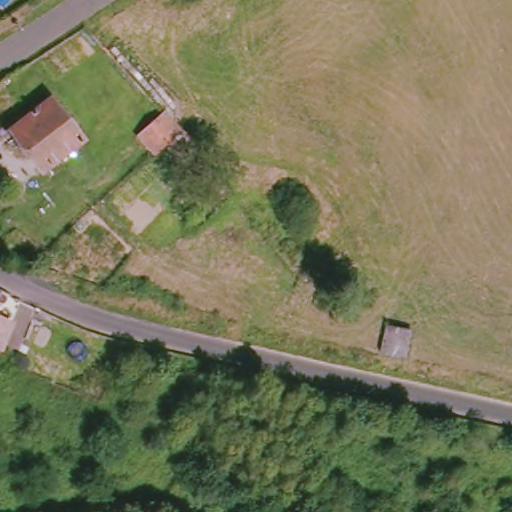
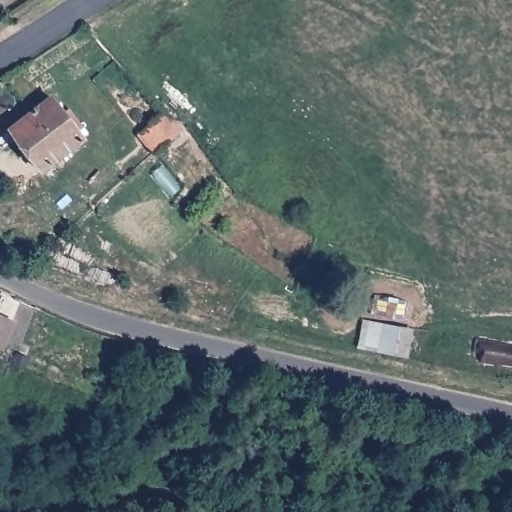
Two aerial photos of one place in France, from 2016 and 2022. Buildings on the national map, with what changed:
unchanged [(39,171),(7,129),(49,97),(80,138),(39,171)]
unchanged [(139,133),(162,112),(178,129),(153,151),(139,133)]
unchanged [(0,298),(2,294),(11,298),(0,321),(0,298)]
unchanged [(385,325),(411,327),(406,361),(380,353),(385,325)]
unchanged [(0,353),(5,355),(2,366),(0,366),(0,353)]

